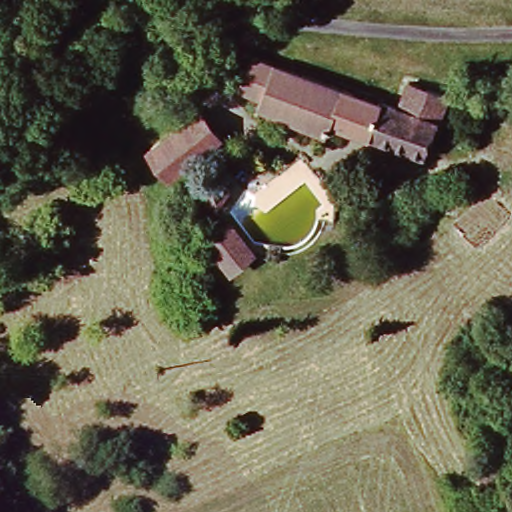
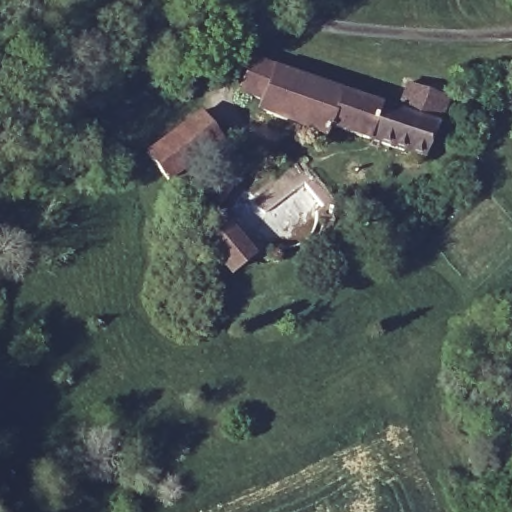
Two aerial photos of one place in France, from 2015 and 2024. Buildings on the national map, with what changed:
unchanged [(320,138),(253,113),(258,101),(234,92),(251,56),(414,111),(421,88),(444,96),(421,164),(322,129),(320,138)]
unchanged [(148,151),(200,117),(219,143),(164,183),(148,151)]
unchanged [(233,192),(224,209),(205,200),(216,182),(233,192)]
unchanged [(228,276),(201,244),(218,229),(245,260),(228,276)]
unchanged [(264,247),(278,249),(277,263),(263,262),(264,247)]

